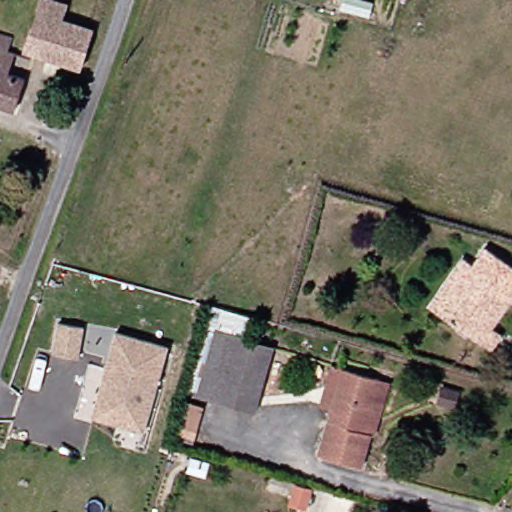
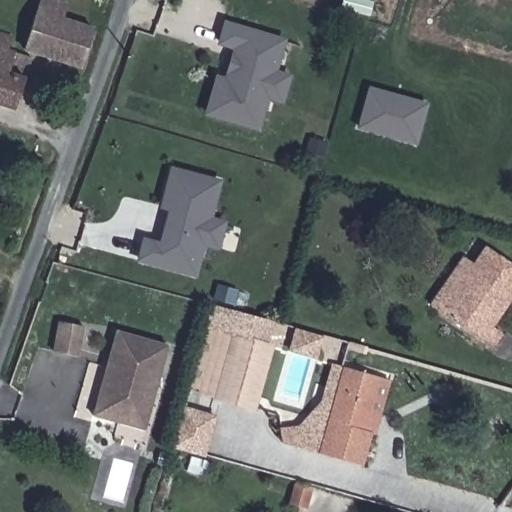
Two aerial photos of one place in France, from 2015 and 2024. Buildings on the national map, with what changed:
unchanged [(36,0),(80,0),(95,5),(85,34),(87,34),(75,71),(19,52),(36,0)]
new [(281,103),(269,99),(260,126),(210,111),(221,76),(230,79),(240,46),(224,41),(230,22),(286,39),(275,75),(288,79),(281,103)]
unchanged [(9,56),(2,77),(17,81),(7,114),(0,111),(0,38),(7,41),(2,54),(9,56)]
new [(372,89),(411,100),(428,105),(418,140),(362,126),(370,94),(372,89)]
new [(172,209),(164,206),(173,169),(220,182),(209,223),(221,226),(215,250),(202,247),(195,273),(140,259),(145,240),(162,245),(166,229),(172,209)]
unchanged [(486,332),(496,339),(486,352),(438,317),(450,301),(470,271),(467,269),(480,252),(512,274),(512,294),(486,332)]
unchanged [(234,408),(182,390),(199,331),(205,307),(235,315),(227,339),(251,346),(234,408)]
unchanged [(85,326),(79,356),(55,352),(60,322),(85,326)]
new [(296,330),(322,336),(316,355),(291,348),(296,330)]
unchanged [(94,415),(98,399),(117,331),(169,346),(150,414),(145,430),(94,415)]
unchanged [(314,458),(331,397),(320,394),(327,368),(376,383),(385,386),(369,439),(365,438),(356,470),(314,458)]
unchanged [(454,406),(438,401),(443,386),(458,391),(454,406)]
unchanged [(204,406),(197,430),(185,426),(192,402),(204,406)]
unchanged [(205,476),(186,471),(190,456),(210,462),(205,476)]

